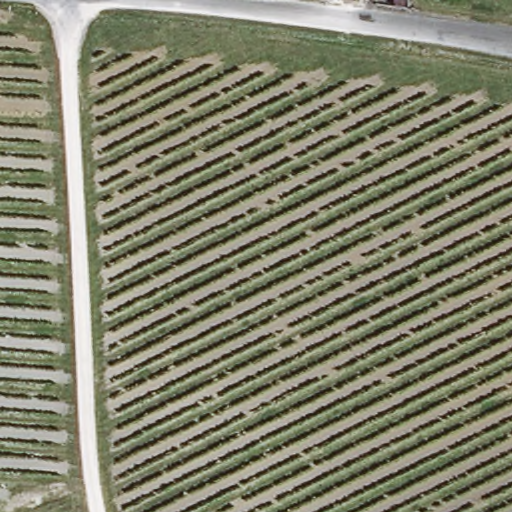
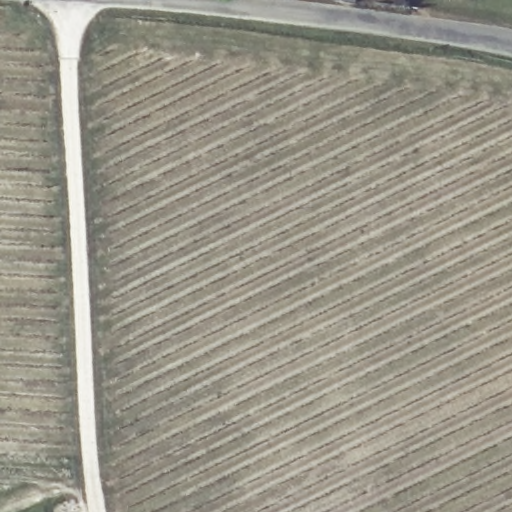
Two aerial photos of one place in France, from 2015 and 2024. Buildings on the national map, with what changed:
[]

